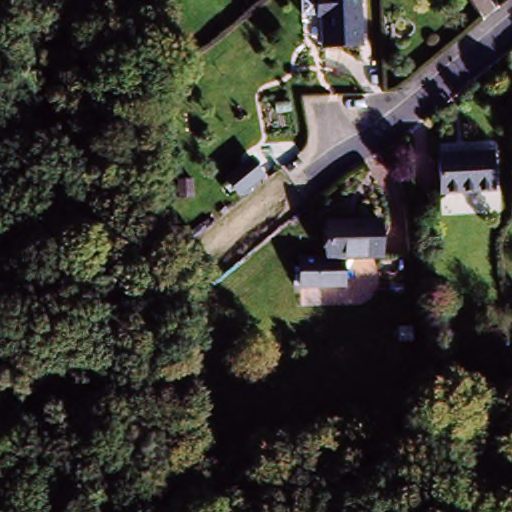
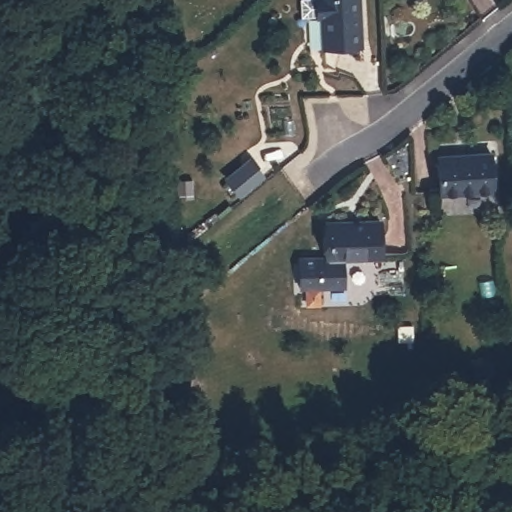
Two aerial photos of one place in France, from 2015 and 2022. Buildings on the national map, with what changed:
unchanged [(359,47),(322,50),(319,17),(312,18),(310,0),(354,0),(359,47)]
unchanged [(485,155),(487,193),(437,198),(435,162),(485,155)]
unchanged [(291,188),(303,203),(282,223),(270,208),(291,188)]
unchanged [(381,258),(345,262),(347,291),(306,295),(304,267),(330,264),(328,225),(377,219),(381,258)]

